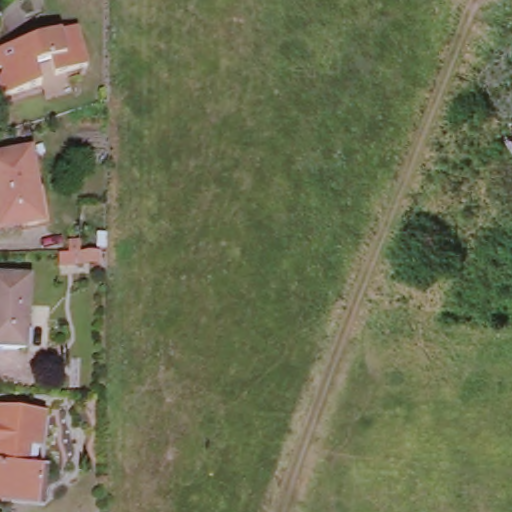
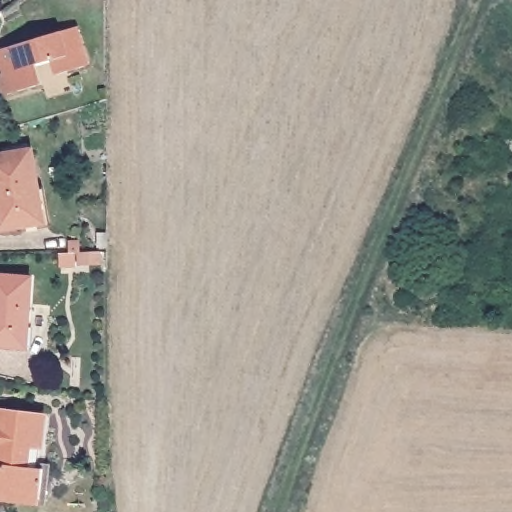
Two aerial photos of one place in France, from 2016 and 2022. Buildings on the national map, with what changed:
unchanged [(93,66),(60,75),(56,60),(41,65),(47,84),(9,95),(5,81),(9,73),(21,70),(19,63),(0,69),(0,51),(81,27),(93,66)]
unchanged [(43,222),(4,229),(0,229),(0,156),(31,151),(43,222)]
unchanged [(26,348),(0,346),(0,276),(31,278),(26,348)]
unchanged [(47,416),(40,471),(47,472),(43,502),(5,498),(6,486),(0,485),(0,415),(0,411),(47,416)]

